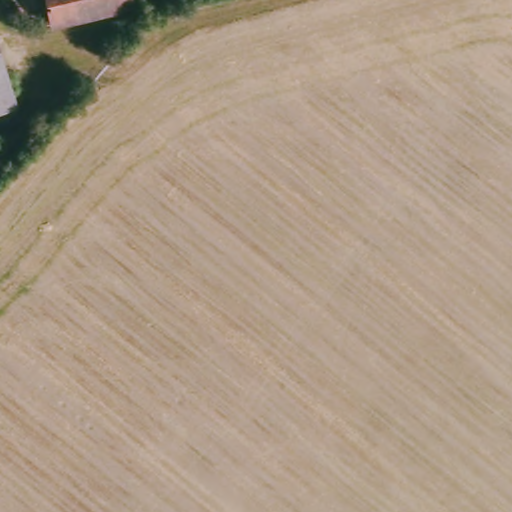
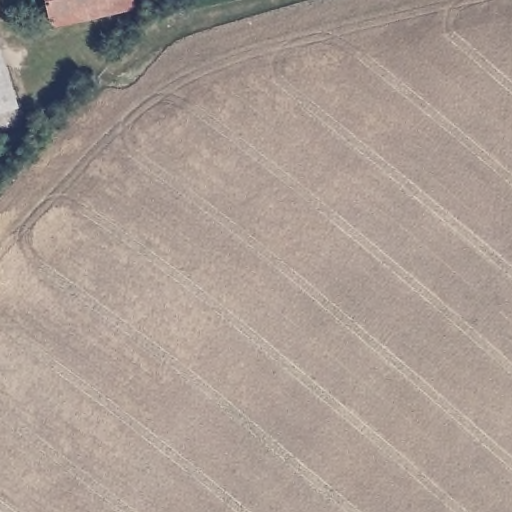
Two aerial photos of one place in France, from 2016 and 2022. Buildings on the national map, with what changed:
unchanged [(142,6),(124,10),(57,25),(52,0),(141,0),(142,6)]
unchanged [(0,116),(0,26),(30,105),(0,116)]

